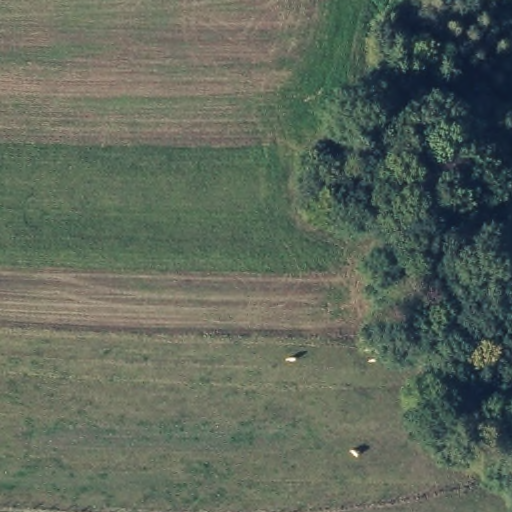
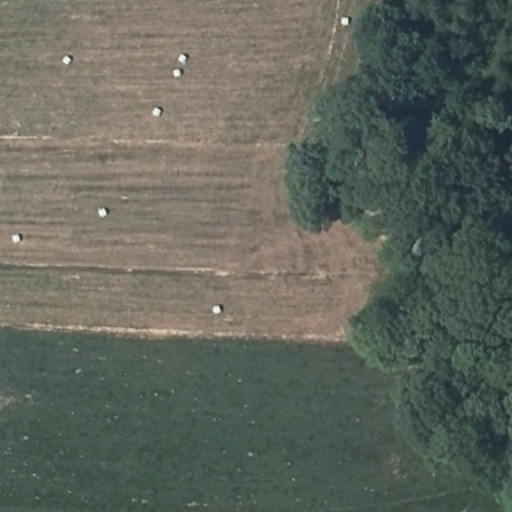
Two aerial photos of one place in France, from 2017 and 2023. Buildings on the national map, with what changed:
[]

